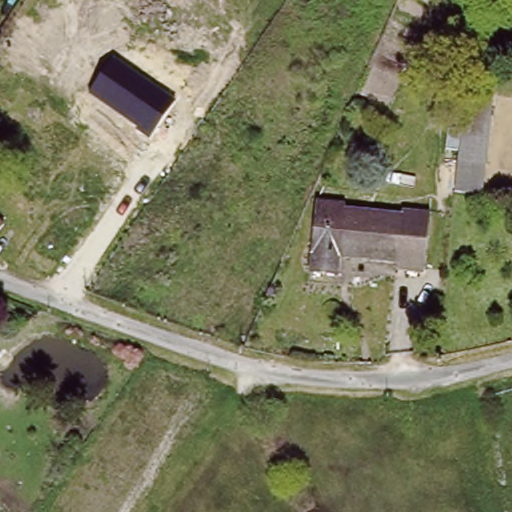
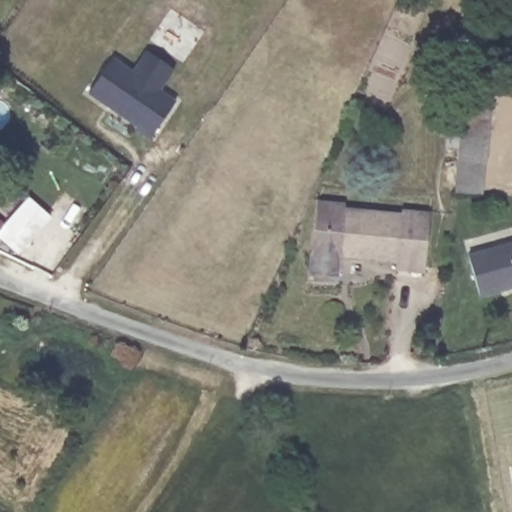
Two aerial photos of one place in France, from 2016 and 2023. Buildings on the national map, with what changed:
unchanged [(86,97),(112,60),(176,100),(151,137),(86,97)]
unchanged [(468,87),(494,89),(487,190),(461,188),(468,87)]
unchanged [(396,265),(397,256),(341,251),(339,270),(312,268),(319,195),(345,198),(344,205),(403,210),(404,205),(431,207),(425,268),(396,265)]
unchanged [(0,226),(0,218),(4,221),(0,226)]
new [(512,243),(512,288),(479,297),(467,256),(512,243)]

